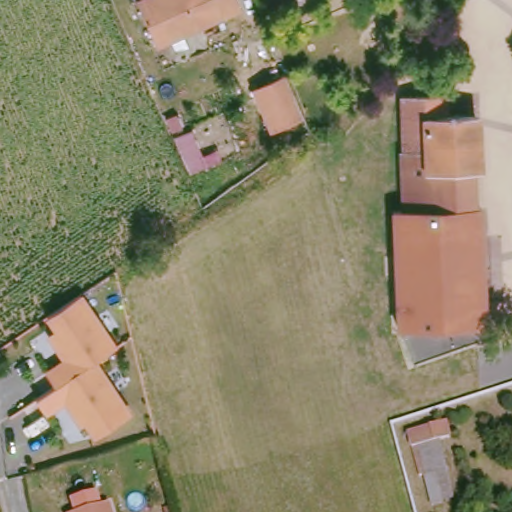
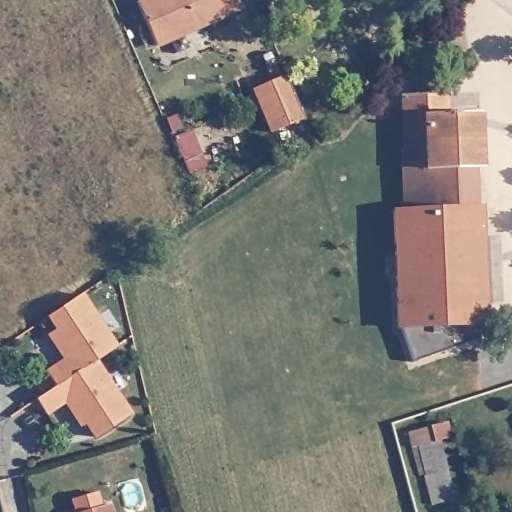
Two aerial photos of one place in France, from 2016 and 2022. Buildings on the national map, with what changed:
unchanged [(156,43),(138,0),(240,0),(243,7),(156,43)]
unchanged [(308,113),(309,116),(271,132),(252,86),(288,70),(289,71),(308,113)]
unchanged [(399,332),(393,210),(401,211),(401,98),(438,95),(453,94),(453,119),(419,120),(418,175),(483,173),(489,337),(414,364),(399,332)]
unchanged [(453,119),(481,115),(483,173),(418,175),(419,120),(453,119)]
unchanged [(91,443),(65,403),(45,415),(34,400),(54,387),(46,369),(62,358),(49,335),(55,328),(48,318),(83,293),(119,347),(98,360),(134,414),(91,443)]
unchanged [(448,418),(450,434),(442,437),(454,495),(425,503),(408,433),(448,418)]
unchanged [(116,512),(79,512),(113,501),(116,512)]

